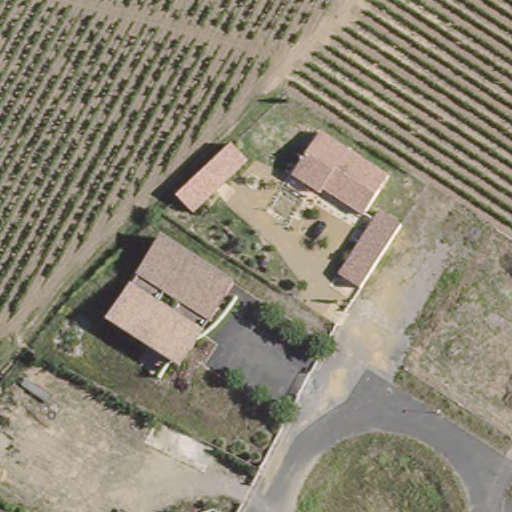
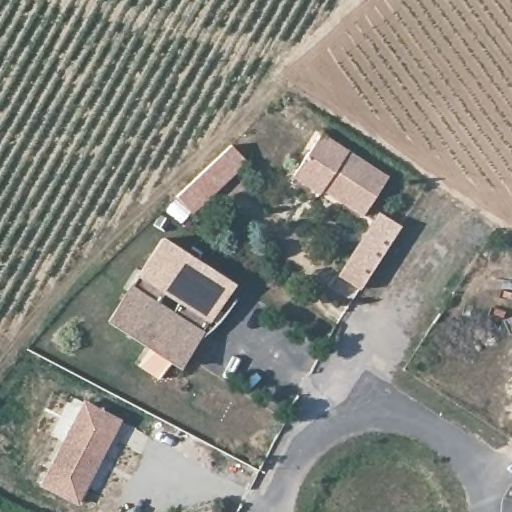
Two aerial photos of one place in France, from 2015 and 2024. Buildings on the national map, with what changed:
unchanged [(388,176),(363,217),(294,175),(321,134),(388,176)]
new [(193,211),(179,197),(230,146),(244,162),(193,211)]
unchanged [(398,224),(359,287),(336,280),(379,213),(398,224)]
unchanged [(240,284),(183,367),(108,318),(163,232),(240,284)]
new [(40,485),(83,400),(123,421),(78,505),(40,485)]

